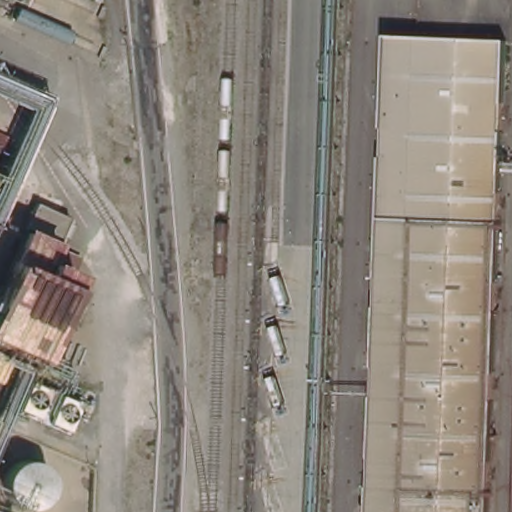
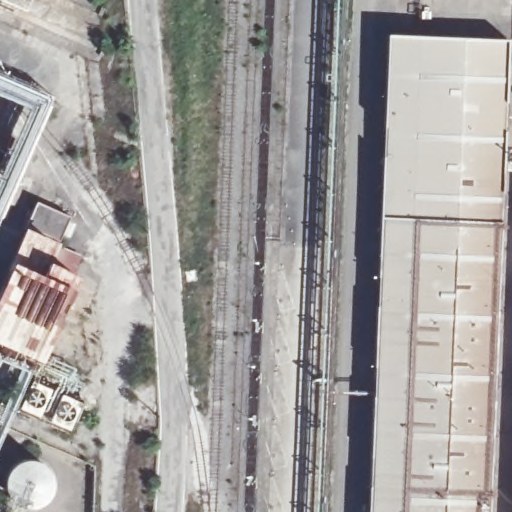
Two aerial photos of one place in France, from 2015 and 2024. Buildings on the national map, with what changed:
unchanged [(491,512),(369,512),(390,31),(511,37),(491,512)]
unchanged [(55,241),(41,272),(68,285),(39,352),(0,334),(0,286),(26,227),(55,241)]
unchanged [(19,407),(34,381),(51,391),(40,415),(19,407)]
unchanged [(50,420),(62,391),(83,400),(70,430),(50,420)]

